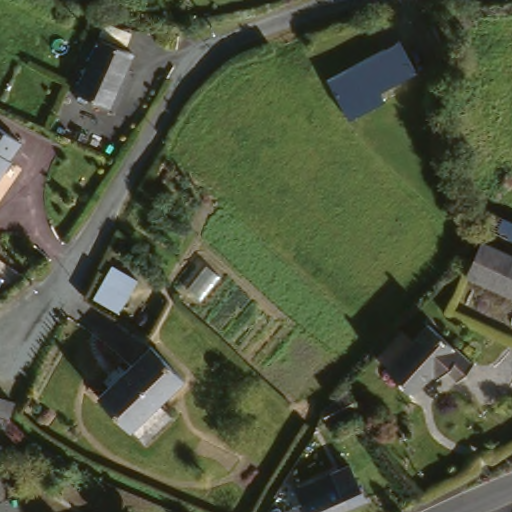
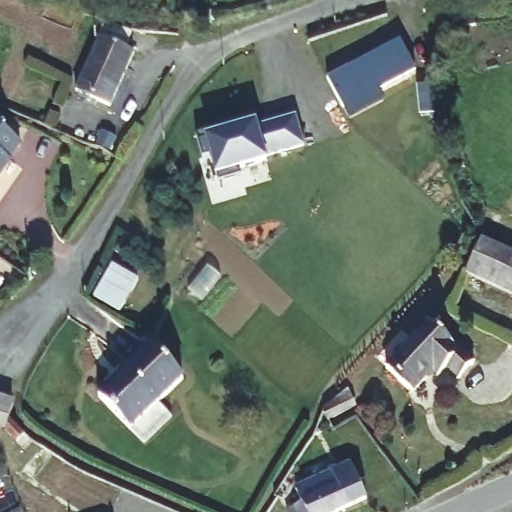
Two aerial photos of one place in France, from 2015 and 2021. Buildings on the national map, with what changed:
unchanged [(102,34),(134,51),(107,102),(75,85),(102,34)]
unchanged [(328,78),(401,42),(419,74),(382,93),(386,101),(349,117),(328,78)]
new [(304,145),(266,156),(267,162),(241,169),(241,176),(218,182),(216,178),(209,155),(201,157),(194,135),(217,128),(219,133),(256,122),(257,126),(295,116),(304,145)]
unchanged [(13,164),(14,167),(0,176),(0,128),(9,122),(30,152),(13,164)]
unchanged [(481,242),(512,254),(512,293),(469,273),(481,242)]
unchanged [(144,317),(83,295),(93,271),(81,266),(87,255),(106,262),(156,284),(158,285),(144,317)]
unchanged [(424,317),(472,356),(458,372),(445,362),(436,372),(431,365),(409,391),(383,363),(424,317)]
unchanged [(149,342),(180,373),(129,427),(98,395),(149,342)]
unchanged [(0,427),(0,392),(27,400),(15,422),(12,428),(0,427)]
unchanged [(316,417),(344,402),(349,415),(323,430),(320,425),(316,417)]
unchanged [(34,486),(25,474),(49,453),(64,462),(34,486)]
unchanged [(284,503),(282,505),(279,498),(289,493),(292,501),(305,496),(299,482),(351,462),(357,476),(363,487),(366,496),(324,512),(288,512),(284,503)]

